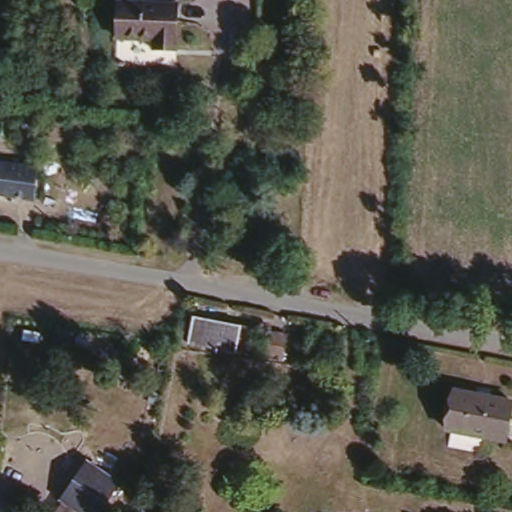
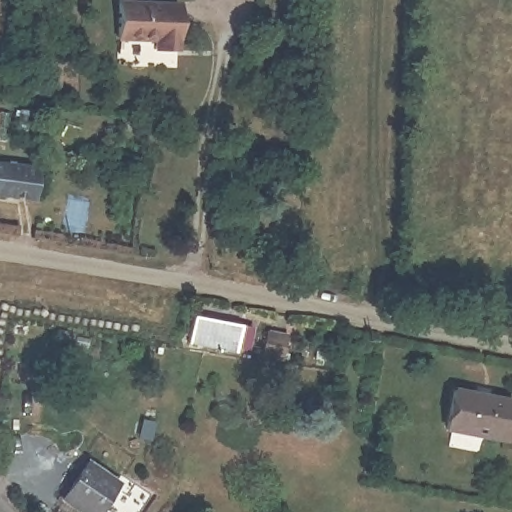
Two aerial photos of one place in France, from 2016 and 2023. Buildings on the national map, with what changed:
unchanged [(154,41),(117,39),(119,2),(119,0),(140,0),(139,2),(177,5),(176,51),(154,50),(154,41)]
unchanged [(38,112),(36,126),(18,124),(19,111),(38,112)]
unchanged [(0,141),(0,113),(9,114),(6,142),(0,141)]
unchanged [(265,161),(268,149),(298,154),(296,167),(265,161)]
unchanged [(4,192),(0,191),(0,158),(39,164),(34,194),(5,190),(4,192)]
unchanged [(247,328),(243,350),(231,347),(230,352),(183,343),(188,317),(247,328)]
unchanged [(56,331),(72,335),(70,345),(54,341),(56,331)]
unchanged [(287,335),(282,360),(262,357),(267,332),(287,335)]
unchanged [(482,427),(479,442),(448,437),(451,421),(446,420),(454,381),(512,392),(504,431),(482,427)]
unchanged [(82,512),(63,498),(86,465),(116,485),(98,512),(82,512)]

